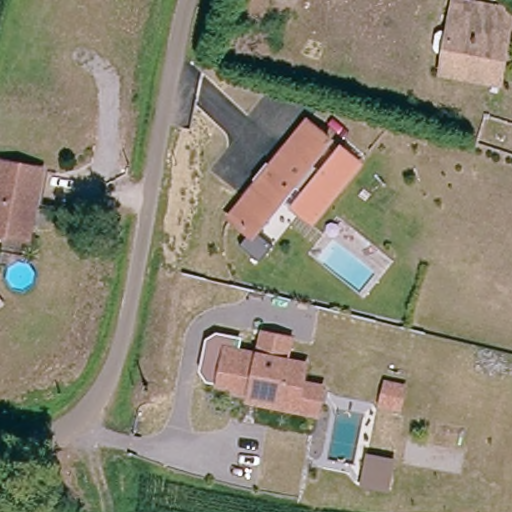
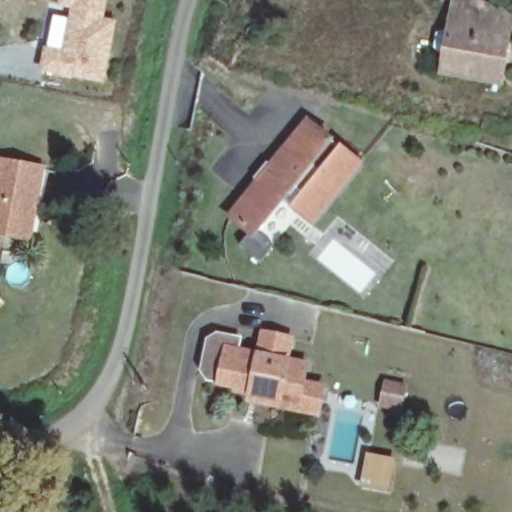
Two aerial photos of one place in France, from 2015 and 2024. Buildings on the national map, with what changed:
new [(103,18),(117,21),(105,85),(40,72),(53,17),(68,20),(70,9),(57,7),(59,0),(107,0),(103,18)]
unchanged [(507,10),(495,86),(443,75),(454,1),(507,10)]
unchanged [(339,145),(359,159),(313,220),(293,207),(304,192),(293,185),(262,223),(264,225),(255,237),(231,219),(258,183),(253,179),(266,163),(270,166),(287,144),(305,120),(328,137),(309,162),(320,170),(339,145)]
unchanged [(11,233),(0,231),(0,171),(2,157),(16,160),(44,166),(35,222),(33,237),(11,233)]
unchanged [(0,309),(0,294),(7,303),(0,309)]
unchanged [(277,408),(256,405),(257,398),(235,394),(235,390),(218,387),(225,352),(258,358),(262,335),(290,340),(286,363),(306,366),(303,386),(323,389),(318,416),(277,408)]

